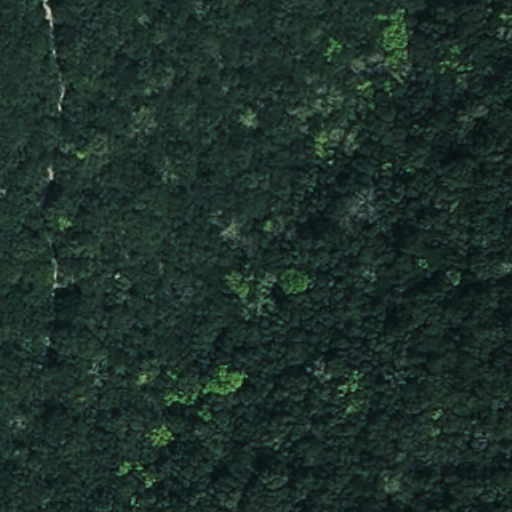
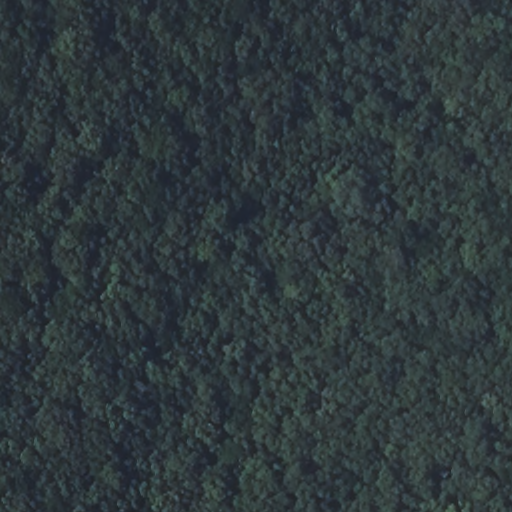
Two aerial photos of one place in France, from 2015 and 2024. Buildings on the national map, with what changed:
[]

